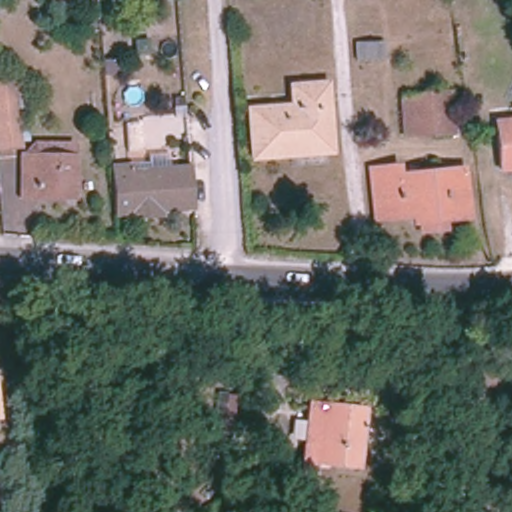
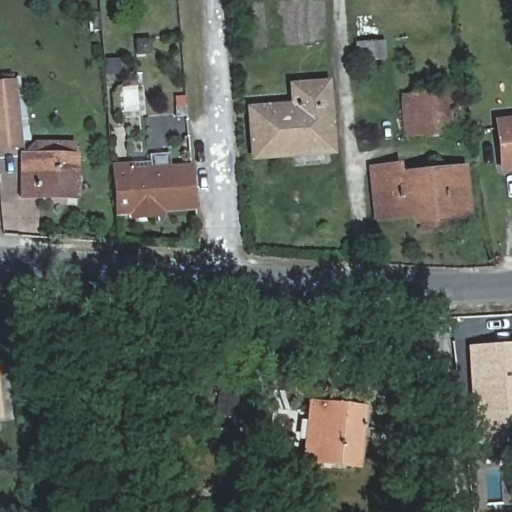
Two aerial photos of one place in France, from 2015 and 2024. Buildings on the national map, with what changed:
unchanged [(385,59),(356,61),(356,43),(383,41),(385,59)]
unchanged [(0,83),(12,82),(16,129),(18,146),(0,148),(0,83)]
unchanged [(333,150),(259,155),(256,111),(300,108),(298,87),(329,85),(333,150)]
unchanged [(455,132),(403,134),(402,94),(453,92),(455,132)]
unchanged [(496,172),(491,129),(512,127),(512,170),(496,172)]
unchanged [(32,197),(32,195),(21,195),(22,154),(24,154),(34,143),(49,144),(75,144),(75,155),(74,197),(32,197)]
unchanged [(192,208),(161,211),(154,211),(154,218),(130,220),(129,213),(114,214),(110,167),(129,166),(130,171),(190,166),(192,208)]
unchanged [(465,215),(443,217),(420,219),(415,220),(415,214),(378,218),(373,170),(394,168),(395,177),(461,170),(465,215)]
unchanged [(420,375),(385,372),(386,361),(391,361),(393,340),(423,343),(420,375)]
new [(475,445),(470,345),(512,343),(512,444),(475,445)]
unchanged [(232,422),(216,421),(219,395),(235,396),(232,422)]
demolished [(0,427),(0,402),(2,427),(0,427)]
unchanged [(358,467),(316,463),(315,473),(302,472),(310,403),(364,409),(358,467)]

